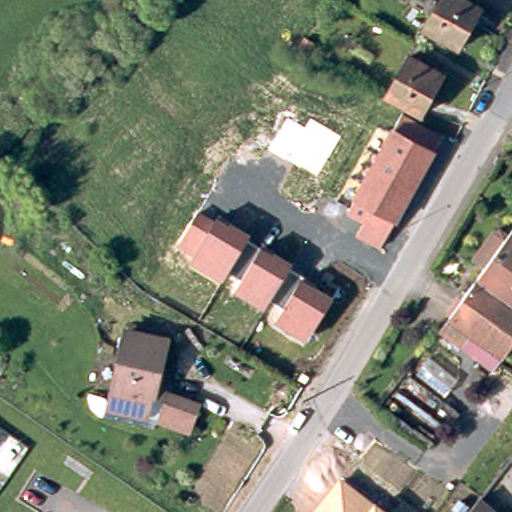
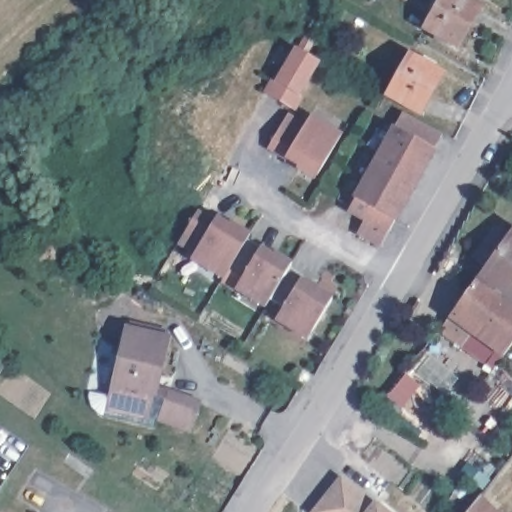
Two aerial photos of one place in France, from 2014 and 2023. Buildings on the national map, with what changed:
unchanged [(477,4),(453,45),(422,26),(437,0),(470,0),(477,4)]
new [(322,63),(294,107),(271,95),(297,51),(322,63)]
unchanged [(415,111),(383,92),(406,53),(438,72),(415,111)]
unchanged [(405,113),(446,135),(381,249),(355,233),(362,220),(349,213),(405,113)]
unchanged [(316,177),(268,151),(288,118),(306,127),(311,119),(341,136),(316,177)]
unchanged [(217,220),(221,213),(253,231),(251,237),(295,262),(294,263),(289,270),(335,298),(309,340),(277,320),(285,305),(272,297),(265,309),(233,291),(241,277),(229,270),(222,279),(190,260),(195,253),(177,244),(197,211),(217,220)]
unchanged [(475,338),(457,325),(451,332),(440,324),(445,317),(484,262),(472,254),(491,227),(497,224),(507,230),(511,224),(512,225),(512,324),(510,327),(492,351),(485,346),(480,354),(469,346),(475,338)]
unchanged [(510,327),(512,324),(512,329),(510,327)]
unchanged [(147,389),(159,392),(161,388),(193,399),(182,428),(153,417),(149,424),(95,411),(86,403),(82,393),(84,388),(106,393),(122,325),(161,335),(147,389)]
unchanged [(315,512),(342,477),(388,512),(315,512)]
unchanged [(482,512),(462,512),(471,502),(482,512)]

